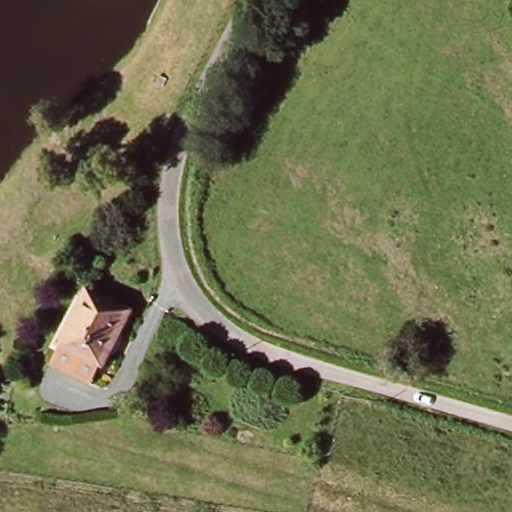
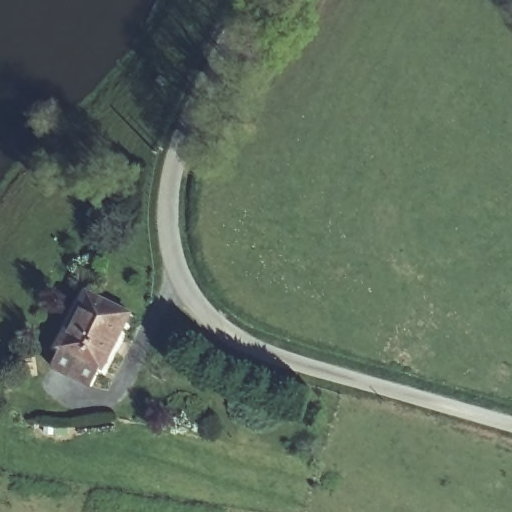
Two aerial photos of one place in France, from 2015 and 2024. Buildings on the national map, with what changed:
unchanged [(95,282),(137,303),(108,360),(100,378),(57,357),(66,338),(95,282)]

